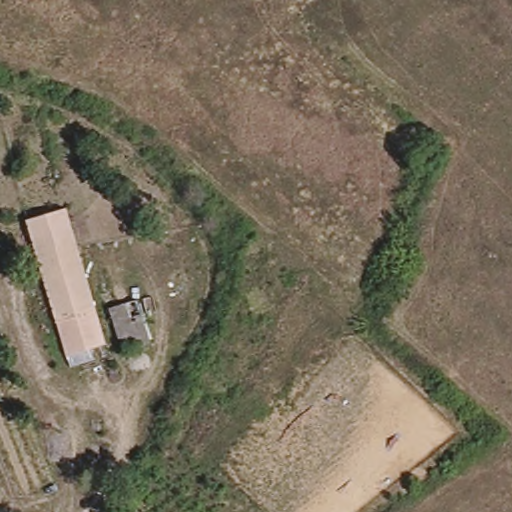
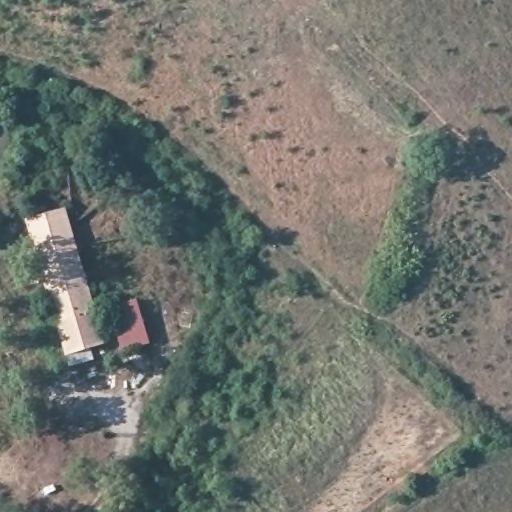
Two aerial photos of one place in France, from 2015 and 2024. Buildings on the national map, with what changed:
unchanged [(109,351),(70,360),(36,222),(76,214),(109,351)]
unchanged [(117,312),(142,305),(155,349),(129,355),(117,312)]

